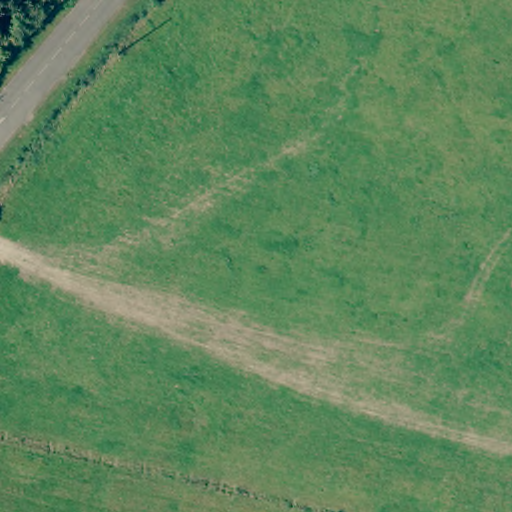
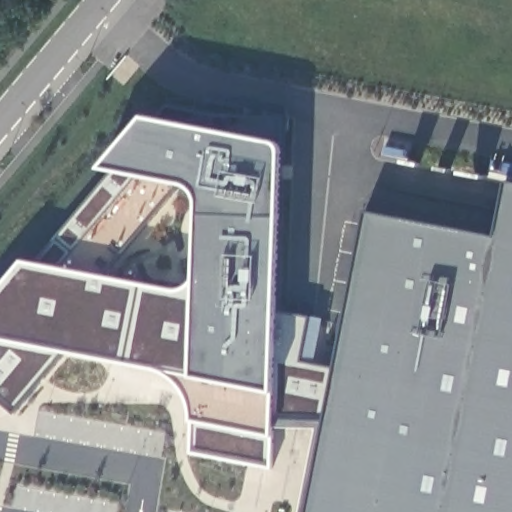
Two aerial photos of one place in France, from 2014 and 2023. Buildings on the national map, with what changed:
new [(25,259),(38,261),(115,171),(100,169),(145,114),(159,116),(168,104),(221,116),(282,116),(281,146),(276,310),(325,317),(316,364),(336,367),(366,211),(496,235),(506,182),(512,183),(512,512),(305,512),(322,426),(272,423),(272,433),(272,468),(192,455),(193,422),(189,397),(174,380),(163,370),(67,352),(15,414),(0,401),(0,288),(25,259)]

